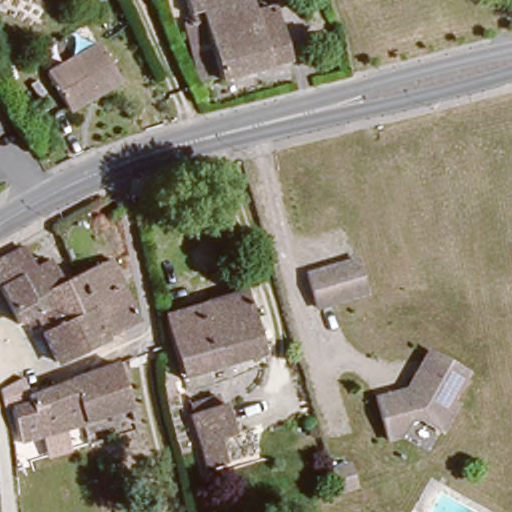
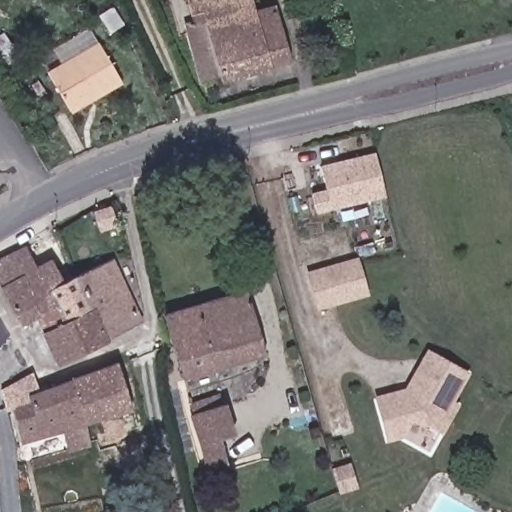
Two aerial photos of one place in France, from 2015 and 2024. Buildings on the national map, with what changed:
unchanged [(271,6),(286,59),(217,77),(201,22),(190,24),(183,0),(247,0),(250,12),(271,6)]
unchanged [(114,81),(73,104),(51,67),(91,43),(114,81)]
new [(325,187),(320,165),(375,152),(386,197),(315,214),(311,192),(325,187)]
unchanged [(33,265),(48,257),(60,280),(72,274),(86,306),(61,318),(45,286),(32,292),(12,251),(23,245),(33,265)]
unchanged [(32,292),(45,286),(61,318),(41,328),(33,312),(18,320),(0,287),(0,256),(12,251),(32,292)]
unchanged [(109,257),(136,318),(100,337),(86,306),(72,274),(109,257)]
unchanged [(355,258),(363,291),(314,305),(307,283),(304,272),(355,258)]
unchanged [(243,286),(261,347),(178,373),(166,327),(162,311),(243,286)]
unchanged [(100,337),(55,359),(41,328),(61,318),(86,306),(100,337)]
unchanged [(465,368),(449,396),(454,398),(439,422),(418,411),(409,414),(400,432),(386,436),(374,395),(391,390),(398,394),(410,391),(417,382),(413,373),(426,352),(433,350),(465,368)]
unchanged [(73,378),(118,361),(131,407),(88,420),(73,378)]
unchanged [(35,392),(73,378),(88,420),(22,440),(14,406),(8,408),(4,387),(29,377),(35,392)]
unchanged [(195,434),(186,405),(220,397),(229,427),(227,430),(229,439),(225,442),(228,453),(222,456),(223,458),(203,465),(195,434)]
unchanged [(334,475),(332,468),(347,465),(353,486),(339,491),(334,475)]

